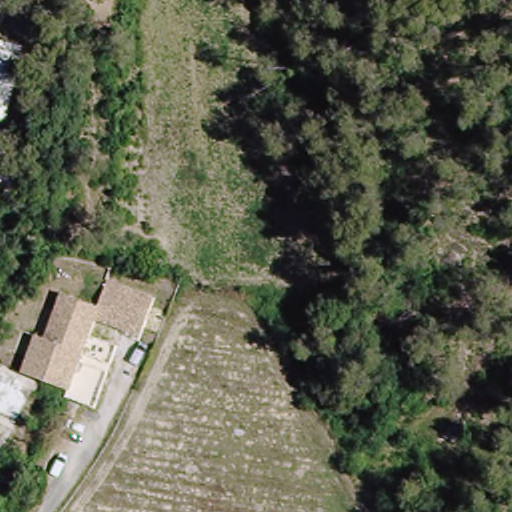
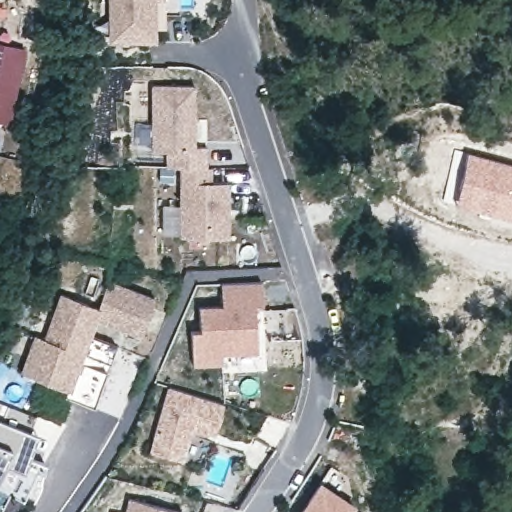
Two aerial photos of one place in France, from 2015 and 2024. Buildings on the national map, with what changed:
new [(108,0),(179,0),(179,12),(164,12),(164,30),(154,28),(155,43),(108,44),(108,0)]
unchanged [(11,127),(0,125),(0,48),(27,53),(11,127)]
new [(182,237),(182,167),(166,167),(166,152),(150,152),(151,87),(194,87),(195,148),(206,149),(205,168),(211,168),(211,182),(230,182),(229,239),(182,237)]
new [(465,152),(512,165),(512,219),(452,202),(465,152)]
unchanged [(0,200),(0,197),(2,197),(0,200)]
unchanged [(30,331),(39,335),(58,289),(67,292),(95,303),(105,278),(117,283),(151,297),(137,334),(111,324),(90,316),(83,332),(106,341),(111,343),(104,362),(99,359),(81,352),(78,360),(95,367),(101,369),(87,405),(73,399),(59,393),(62,387),(39,377),(15,368),(30,331)]
new [(192,332),(202,332),(200,307),(222,307),(221,284),(262,282),(264,306),(253,307),(255,352),(221,355),(221,366),(194,366),(192,332)]
unchanged [(40,383),(30,402),(0,459),(0,366),(2,363),(37,382),(40,383)]
new [(148,448),(169,387),(224,404),(214,437),(190,430),(183,460),(148,448)]
new [(320,482),(353,505),(355,512),(300,512),(320,482)]
new [(130,498),(183,512),(126,512),(130,498)]

